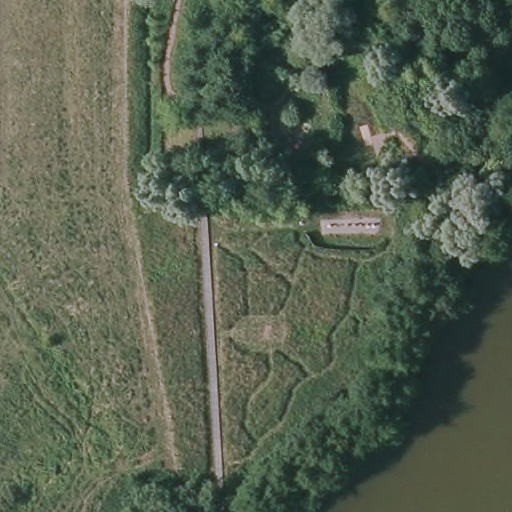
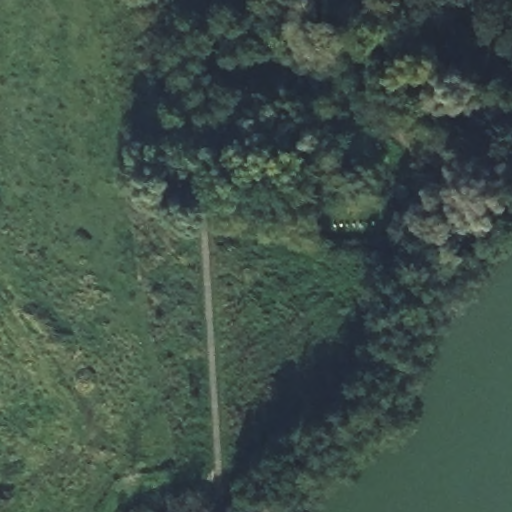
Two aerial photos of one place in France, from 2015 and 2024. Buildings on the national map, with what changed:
[]

